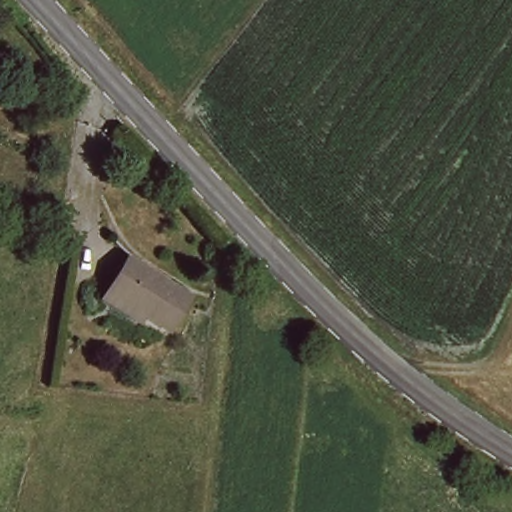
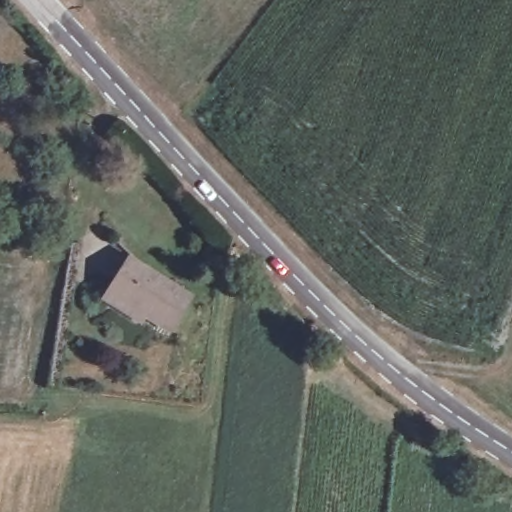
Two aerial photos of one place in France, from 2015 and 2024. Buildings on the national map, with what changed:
unchanged [(97,303),(101,295),(123,260),(187,300),(166,334),(139,318),(134,326),(97,303)]

